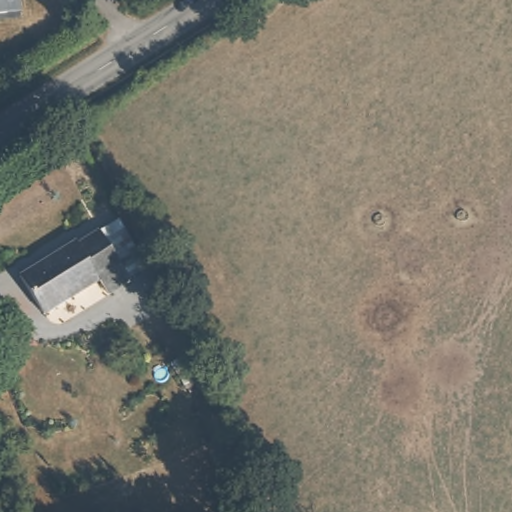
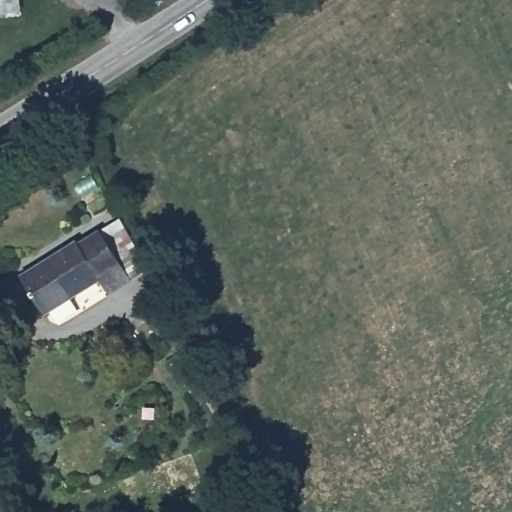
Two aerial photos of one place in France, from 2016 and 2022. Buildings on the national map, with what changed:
unchanged [(19,11),(0,13),(0,0),(18,0),(19,11)]
unchanged [(73,241),(76,245),(95,230),(130,276),(110,292),(99,281),(46,320),(20,282),(73,241)]

